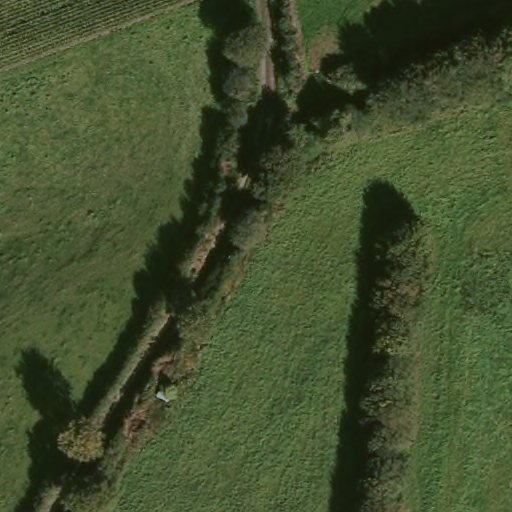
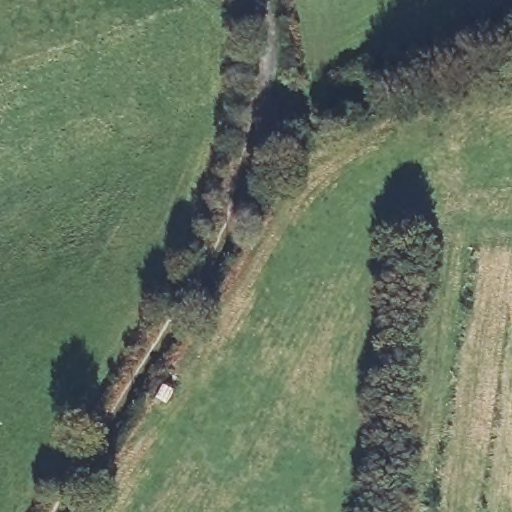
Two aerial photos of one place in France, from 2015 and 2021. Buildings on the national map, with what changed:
[]

